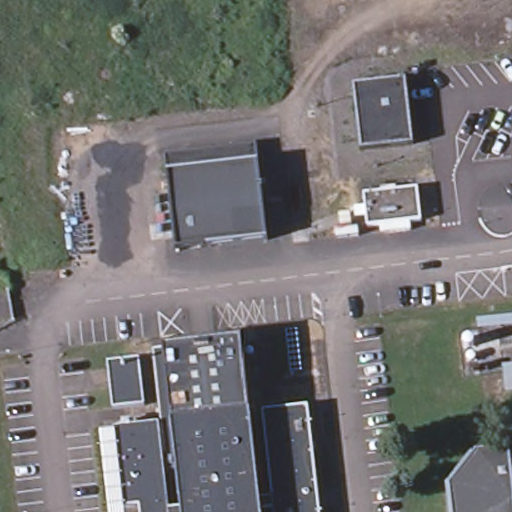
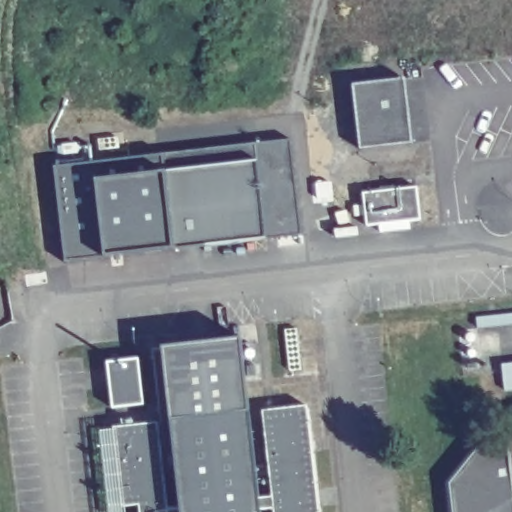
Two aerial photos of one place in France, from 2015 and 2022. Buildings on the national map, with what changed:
unchanged [(409,76),(415,143),(362,147),(354,83),(409,76)]
unchanged [(257,141),(270,233),(179,244),(175,244),(165,151),(257,141)]
new [(110,254),(67,262),(57,167),(165,151),(167,172),(175,244),(110,254)]
unchanged [(423,224),(412,225),(412,233),(383,236),(382,229),(370,230),(367,197),(420,191),(423,224)]
unchanged [(475,320),(475,313),(512,309),(512,316),(475,320)]
unchanged [(235,340),(242,419),(172,427),(162,347),(235,340)]
unchanged [(146,405),(115,408),(110,362),(141,359),(146,405)]
unchanged [(503,393),(500,370),(512,368),(512,392),(503,393)]
unchanged [(162,428),(172,427),(242,419),(244,440),(251,505),(264,503),(254,417),(299,412),(313,512),(171,512),(162,428)]
unchanged [(105,435),(150,430),(159,512),(113,512),(105,435)]
unchanged [(444,489),(472,451),(505,448),(504,437),(512,436),(512,512),(447,512),(444,489)]

